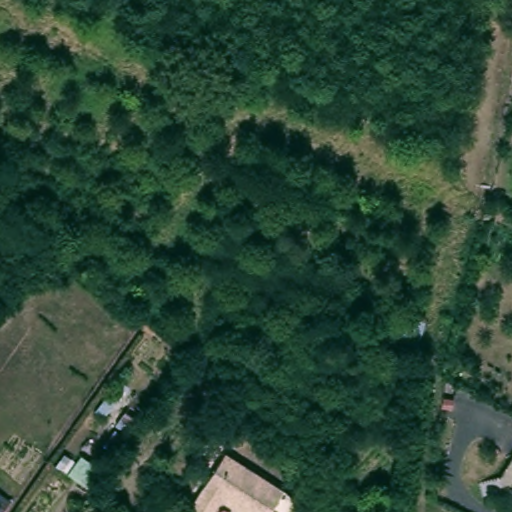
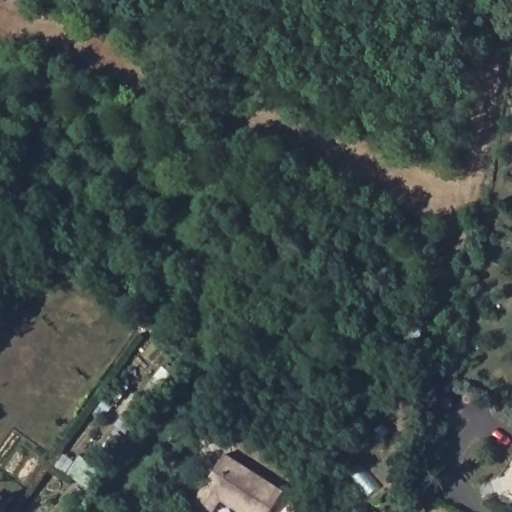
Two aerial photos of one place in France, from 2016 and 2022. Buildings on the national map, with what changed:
unchanged [(388,357),(396,312),(424,318),(413,361),(388,357)]
unchanged [(199,506),(235,452),(292,490),(278,512),(250,512),(229,498),(223,509),(221,512),(207,512),(199,506)]

